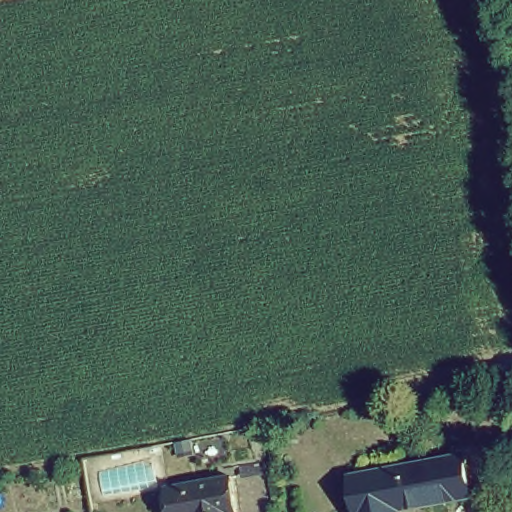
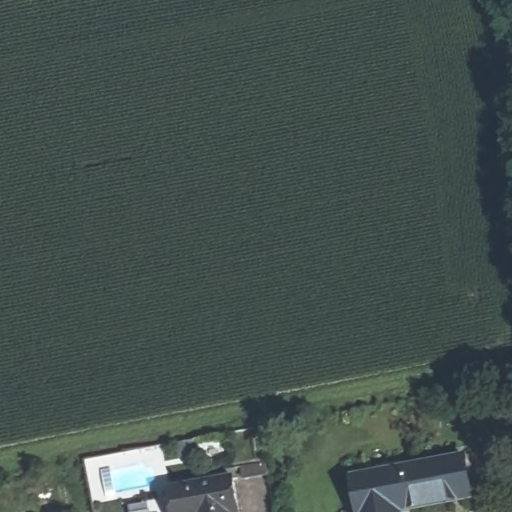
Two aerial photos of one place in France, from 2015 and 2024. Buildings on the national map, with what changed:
unchanged [(466,498),(396,510),(396,512),(353,512),(346,476),(458,456),(466,498)]
unchanged [(233,477),(239,512),(172,512),(167,488),(233,477)]

